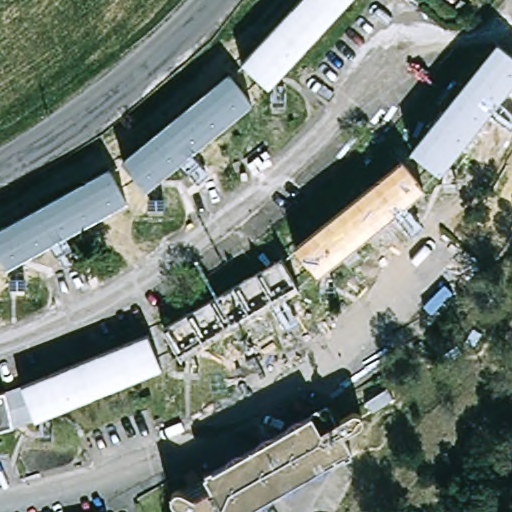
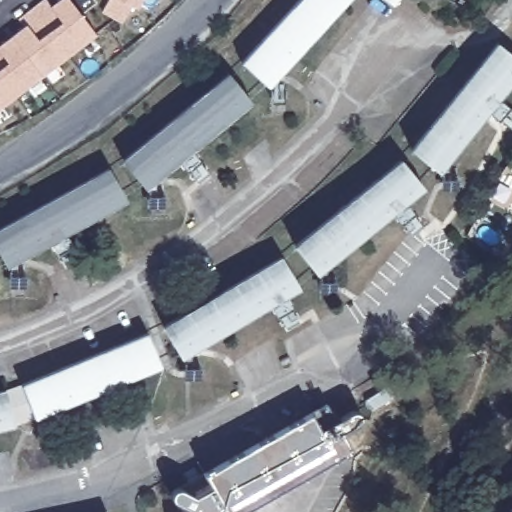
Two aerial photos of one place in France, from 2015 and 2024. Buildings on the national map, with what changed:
new [(0,108),(0,44),(1,45),(24,26),(18,19),(42,0),(48,0),(52,5),(58,0),(70,0),(97,35),(0,108)]
new [(138,10),(132,6),(123,22),(103,10),(107,0),(143,0),(138,10)]
unchanged [(301,0),(348,0),(271,84),(245,60),(301,0)]
unchanged [(512,49),(512,87),(445,170),(418,147),(503,42),(512,49)]
unchanged [(227,77),(249,104),(144,190),(122,164),(227,77)]
unchanged [(406,165),(428,191),(324,275),(302,247),(406,165)]
unchanged [(112,170),(129,200),(11,267),(0,248),(0,233),(112,170)]
unchanged [(282,260),(299,290),(182,358),(164,327),(282,260)]
unchanged [(153,336),(165,368),(41,417),(28,386),(153,336)]
unchanged [(11,392),(19,426),(0,431),(0,395),(11,392)]
unchanged [(345,423),(361,415),(365,417),(367,418),(368,422),(368,425),(367,430),(352,437),(360,453),(247,512),(186,512),(186,506),(184,502),(183,498),(185,493),(187,491),(192,490),(216,478),(211,469),(335,405),(345,423)]

